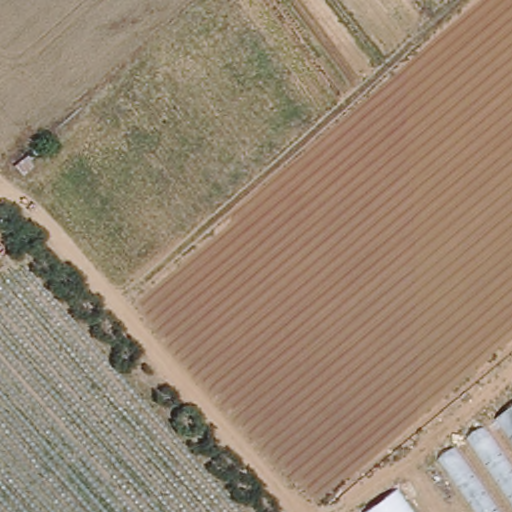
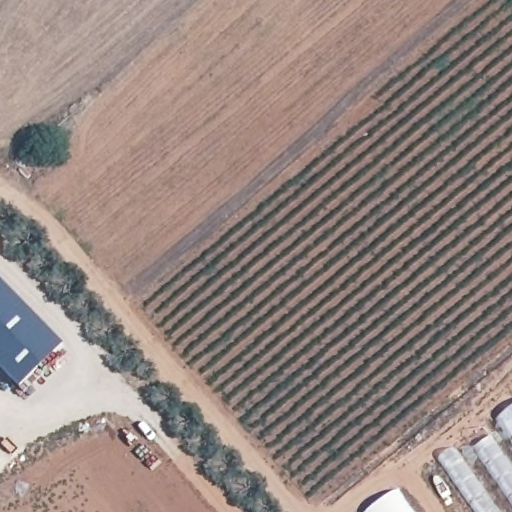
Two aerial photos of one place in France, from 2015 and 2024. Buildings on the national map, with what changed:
new [(64,346),(19,389),(0,370),(0,280),(64,346)]
unchanged [(512,407),(512,512),(474,512),(435,456),(512,407)]
new [(411,512),(365,512),(396,490),(411,512)]

